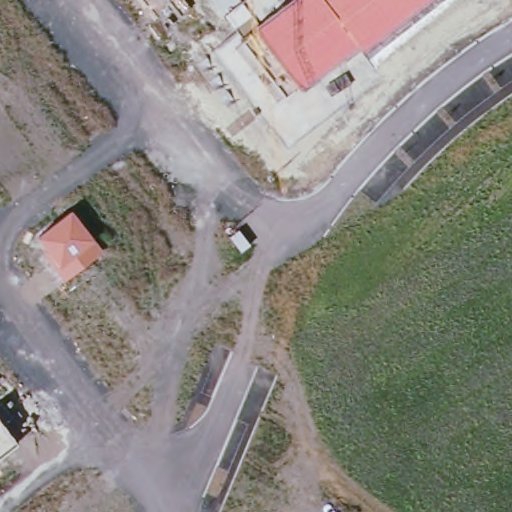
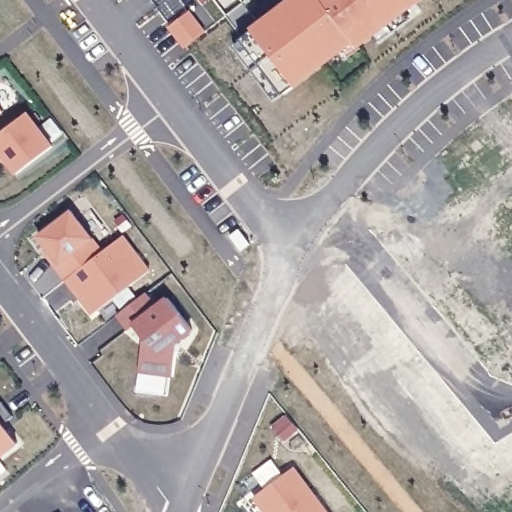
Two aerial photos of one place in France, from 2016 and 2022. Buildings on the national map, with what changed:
unchanged [(356,47),(300,88),(295,84),(276,99),(233,41),(287,0),(424,0),(358,49),(356,47)]
new [(193,14),(207,32),(188,47),(174,28),(193,14)]
new [(4,111),(0,114),(0,106),(4,111)]
new [(29,112),(55,145),(19,173),(4,154),(0,157),(0,134),(29,112)]
unchanged [(103,250),(67,279),(44,251),(46,248),(37,237),(72,210),(103,250)]
new [(67,279),(103,250),(125,235),(151,270),(92,315),(67,279)]
new [(146,293),(157,307),(170,297),(194,329),(178,342),(174,374),(141,370),(145,337),(136,324),(131,328),(120,313),(146,293)]
new [(141,370),(170,374),(167,394),(138,390),(141,370)]
unchanged [(17,442),(0,454),(0,420),(17,442)]
new [(265,510),(255,496),(294,467),(328,512),(266,512),(265,510)]

